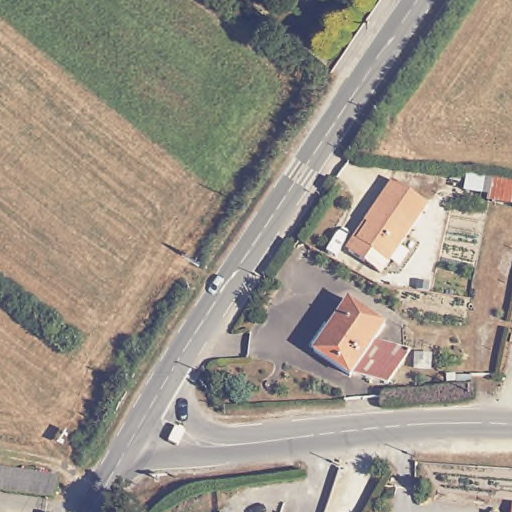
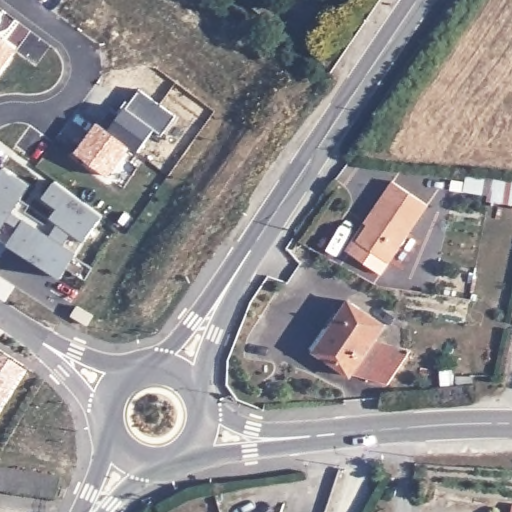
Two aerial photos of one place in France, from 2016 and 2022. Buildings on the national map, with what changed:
new [(0,69),(0,37),(15,48),(0,69)]
new [(109,107),(117,112),(125,100),(129,102),(139,89),(176,115),(162,135),(154,130),(138,151),(130,146),(107,177),(76,153),(109,107)]
new [(31,185),(13,211),(52,236),(60,223),(52,218),(59,208),(45,197),(56,182),(102,217),(85,242),(72,233),(65,244),(77,253),(61,279),(0,239),(0,175),(5,168),(31,185)]
unchanged [(512,182),(512,204),(487,201),(487,194),(465,191),(467,178),(512,182)]
unchanged [(346,252),(365,226),(360,222),(389,181),(423,205),(381,269),(376,275),(366,267),(346,252)]
unchanged [(386,327),(374,343),(407,353),(386,387),(353,378),(317,356),(333,334),(326,329),(347,299),(386,327)]
new [(0,404),(0,356),(22,371),(0,404)]
unchanged [(0,491),(0,468),(60,478),(54,499),(0,491)]

